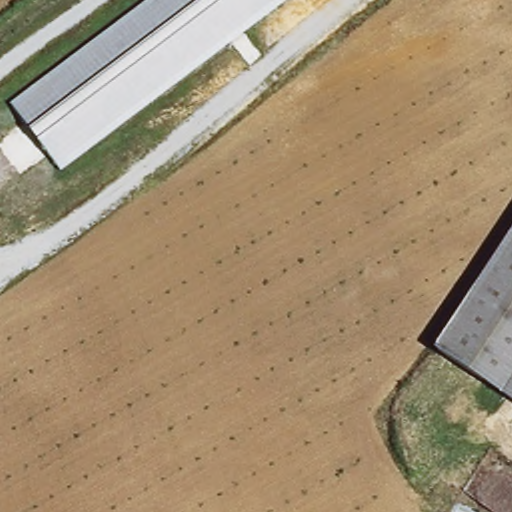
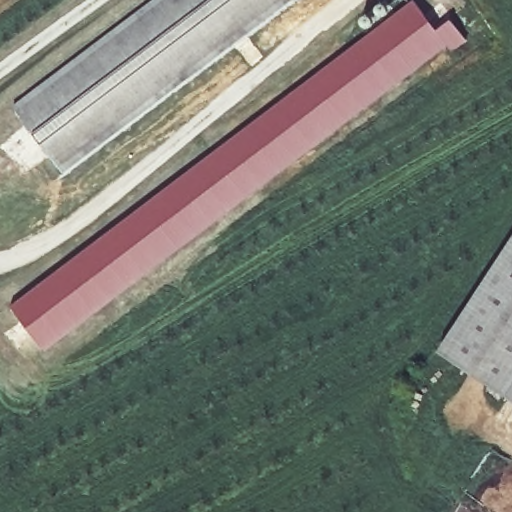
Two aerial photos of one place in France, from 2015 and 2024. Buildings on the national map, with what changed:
unchanged [(11,106),(151,0),(296,0),(63,175),(11,106)]
new [(413,1),(436,31),(451,19),(467,41),(451,52),(447,47),(47,351),(13,305),(413,1)]
unchanged [(512,235),(512,397),(437,347),(512,235)]

